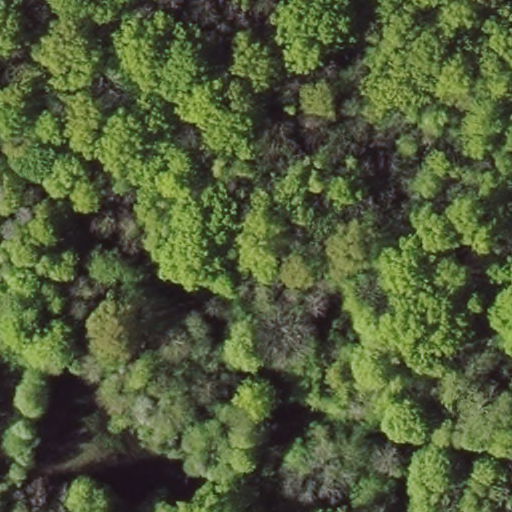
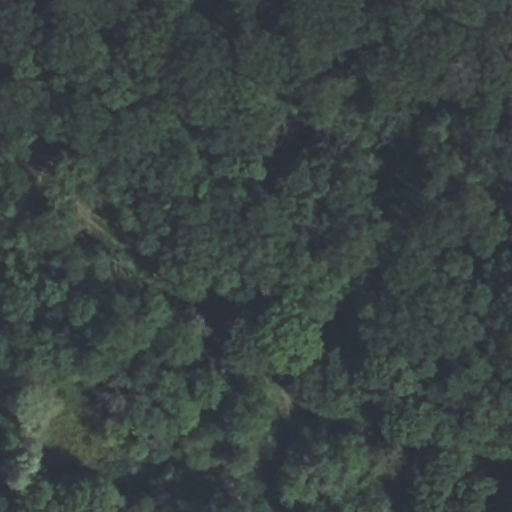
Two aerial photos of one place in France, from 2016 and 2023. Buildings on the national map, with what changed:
unchanged [(330,250),(348,326),(287,344),(269,267),(330,250)]

